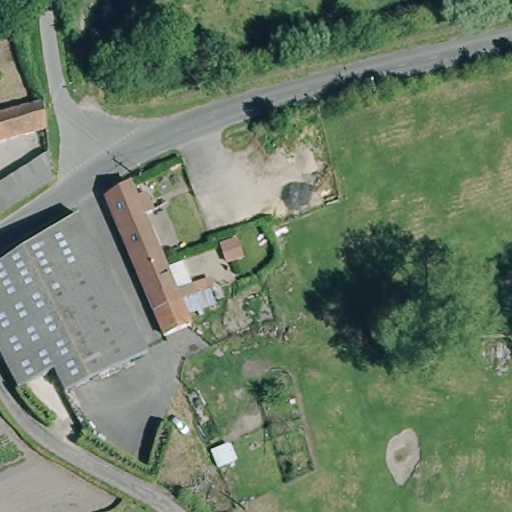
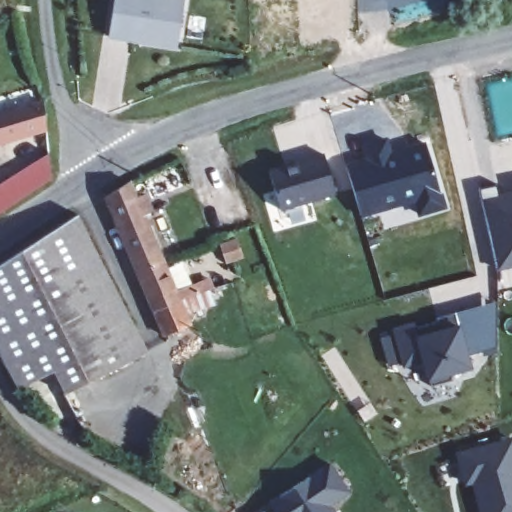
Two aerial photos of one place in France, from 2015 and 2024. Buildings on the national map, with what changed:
new [(119,0),(186,0),(189,1),(182,46),(163,42),(164,39),(158,38),(157,42),(131,37),(131,41),(113,38),(119,0)]
unchanged [(45,132),(47,155),(50,183),(0,215),(0,185),(30,166),(27,137),(0,145),(0,117),(42,105),(45,132)]
new [(350,167),(371,161),(367,147),(390,141),(395,157),(407,154),(406,152),(430,146),(447,209),(422,216),(419,201),(364,217),(350,167)]
new [(281,211),(269,170),(285,165),(288,173),(298,170),(295,162),(323,154),(335,195),(281,211)]
unchanged [(190,323),(164,334),(163,332),(160,323),(153,310),(106,196),(128,182),(136,200),(146,196),(153,212),(144,217),(162,261),(179,299),(180,301),(210,290),(215,302),(185,315),(190,322),(190,323)]
new [(480,189),(496,186),(498,195),(512,191),(512,266),(497,270),(482,201),(480,189)]
unchanged [(54,367),(19,384),(0,349),(0,263),(78,216),(139,343),(145,356),(131,362),(67,392),(54,367)]
new [(495,347),(467,353),(472,368),(450,374),(452,380),(429,386),(427,379),(422,362),(402,369),(391,328),(414,322),(415,328),(435,323),(434,317),(495,302),(495,347)]
new [(481,512),(475,480),(464,483),(455,452),(512,436),(512,512),(481,512)]
new [(331,506),(335,512),(277,512),(272,505),(332,465),(350,493),(331,506)]

